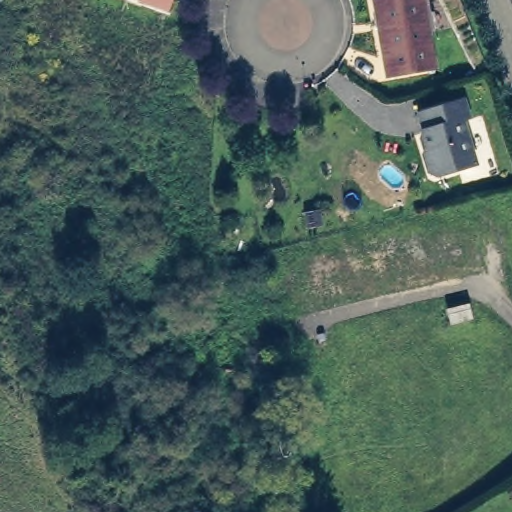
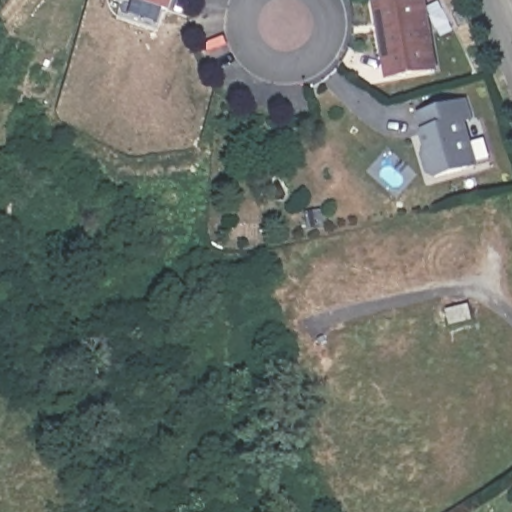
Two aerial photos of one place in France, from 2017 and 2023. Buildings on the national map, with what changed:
unchanged [(126,0),(172,0),(167,12),(126,0)]
unchanged [(385,70),(373,0),(422,0),(432,62),(385,70)]
unchanged [(467,99),(472,117),(465,120),(478,164),(438,176),(432,172),(429,162),(432,156),(425,130),(427,129),(422,112),(467,99)]
unchanged [(470,317),(448,322),(446,311),(467,305),(470,317)]

